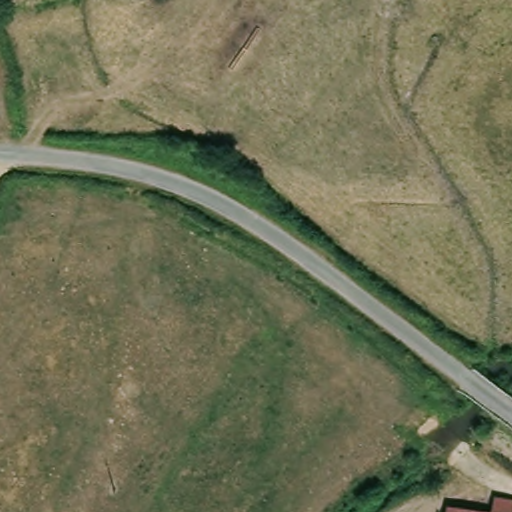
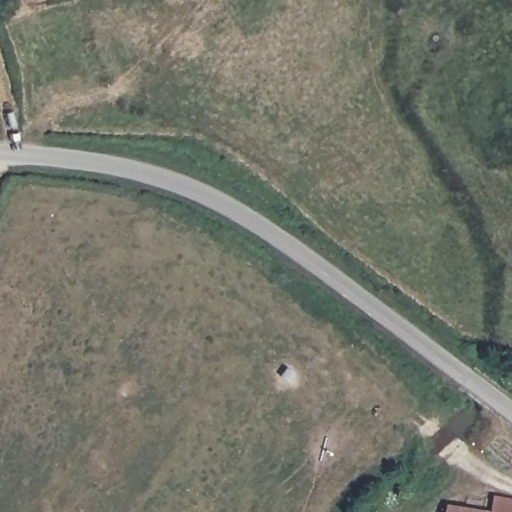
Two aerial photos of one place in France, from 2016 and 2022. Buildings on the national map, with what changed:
unchanged [(446,506),(491,512),(494,496),(512,500),(512,512),(445,512),(446,506)]

